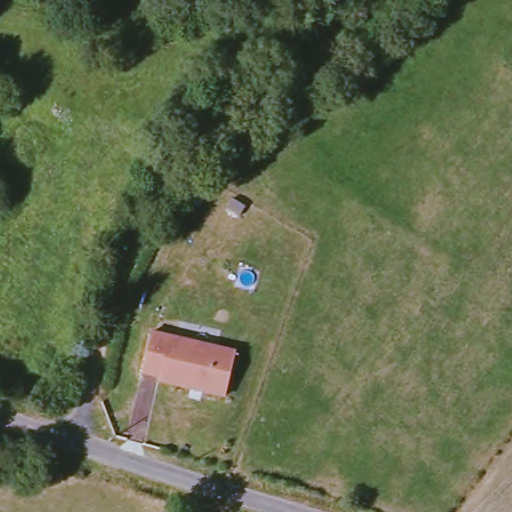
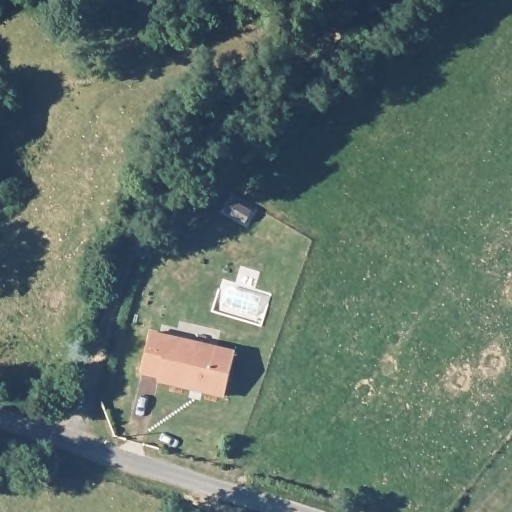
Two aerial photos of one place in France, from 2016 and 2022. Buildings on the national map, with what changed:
unchanged [(160,381),(161,376),(143,372),(153,332),(237,352),(226,397),(160,381)]

